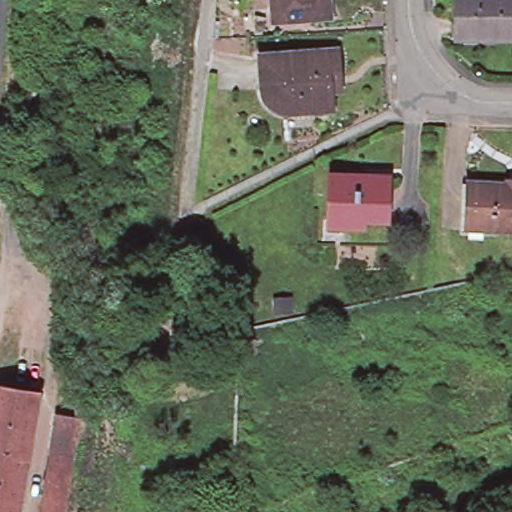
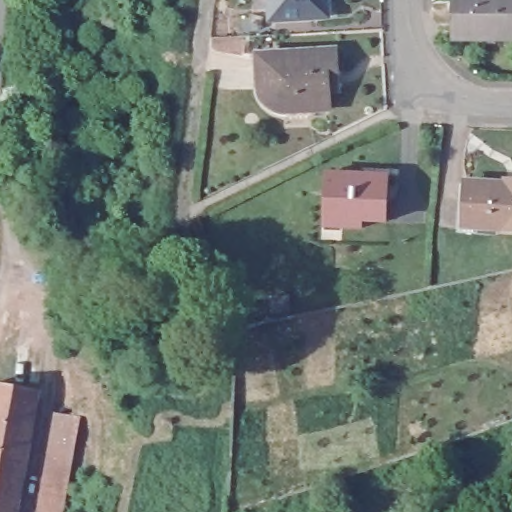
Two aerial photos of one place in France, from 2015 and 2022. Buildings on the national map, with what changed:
unchanged [(327,17),(271,19),(270,0),(327,0),(327,17)]
unchanged [(512,40),(452,40),(453,0),(512,0),(512,40)]
unchanged [(253,55),(305,50),(319,51),(332,50),(335,90),(324,90),(325,113),(285,114),(273,111),(263,104),(257,95),(255,86),(253,55)]
unchanged [(323,232),(323,215),(323,172),(383,172),(384,216),(362,216),(361,225),(341,225),(340,233),(323,232)]
unchanged [(462,187),(499,189),(500,181),(512,181),(512,230),(460,230),(462,187)]
unchanged [(19,512),(0,512),(0,401),(37,407),(19,512)]
unchanged [(78,433),(65,512),(42,512),(57,430),(78,433)]
unchanged [(163,450),(163,444),(173,445),(173,450),(163,450)]

